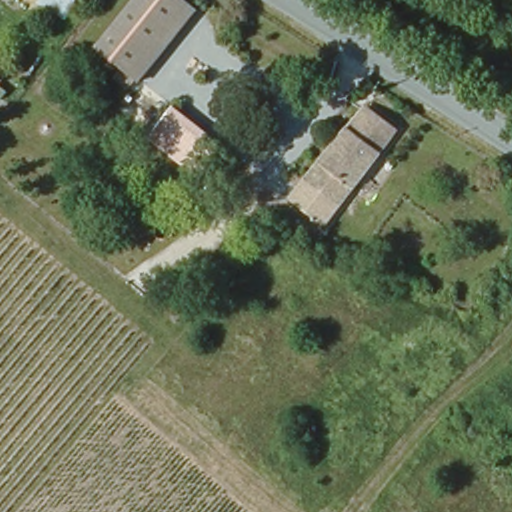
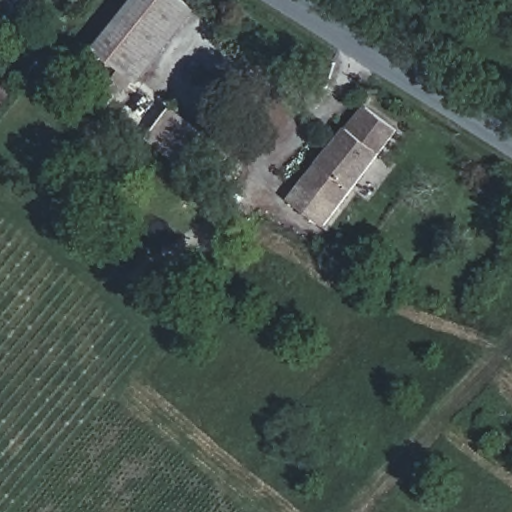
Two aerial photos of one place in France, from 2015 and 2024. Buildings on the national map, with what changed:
unchanged [(39,0),(66,0),(72,3),(61,20),(35,7),(39,0)]
unchanged [(189,5),(134,75),(101,50),(142,0),(183,0),(189,5)]
unchanged [(222,143),(196,173),(149,138),(174,106),(222,143)]
unchanged [(290,198),(295,194),(319,167),(305,157),(333,122),(348,133),(366,113),(393,134),(337,206),(325,225),(290,198)]

